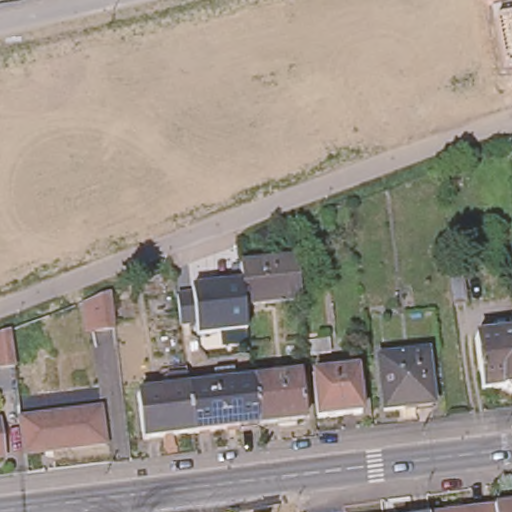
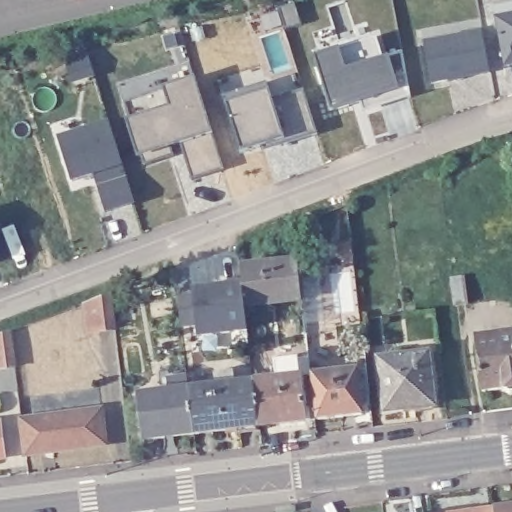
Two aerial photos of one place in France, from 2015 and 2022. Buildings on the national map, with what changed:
unchanged [(506,69),(494,17),(512,13),(512,68),(506,69)]
unchanged [(484,35),(491,74),(464,79),(465,80),(456,82),(456,80),(452,81),(452,82),(450,83),(449,81),(432,85),(425,45),(484,35)]
new [(315,57),(339,50),(376,37),(383,59),(388,57),(403,52),(411,96),(364,110),(361,99),(332,108),(315,57)]
new [(197,81),(225,171),(192,182),(184,155),(144,167),(124,105),(197,81)]
new [(268,84),(273,101),(305,91),(319,135),(285,146),(283,141),(241,155),(223,97),(268,84)]
new [(73,182),(59,140),(110,125),(136,205),(107,214),(98,186),(95,175),(73,182)]
unchanged [(239,268),(296,262),(301,301),(244,309),(239,268)]
unchanged [(244,309),(246,332),(197,338),(196,328),(180,330),(177,296),(190,295),(190,285),(241,280),(244,309)]
unchanged [(85,303),(111,295),(116,330),(89,333),(85,303)]
unchanged [(11,330),(16,366),(0,368),(0,335),(11,330)]
unchanged [(508,399),(503,393),(499,393),(499,390),(481,392),(474,338),(512,334),(512,399),(508,399)]
unchanged [(428,354),(434,406),(384,412),(378,360),(428,354)]
unchanged [(356,371),(362,415),(318,421),(312,377),(356,371)]
unchanged [(168,392),(166,378),(187,376),(189,390),(253,382),(259,426),(194,433),(143,440),(138,396),(168,392)]
unchanged [(253,382),(301,376),(306,420),(259,426),(253,382)]
unchanged [(22,420),(23,420),(101,410),(105,445),(26,454),(22,420)]
unchanged [(4,457),(0,457),(0,427),(4,457)]
unchanged [(512,508),(512,512),(494,512),(494,510),(512,508)]
unchanged [(494,510),(494,512),(482,512),(494,510)]

